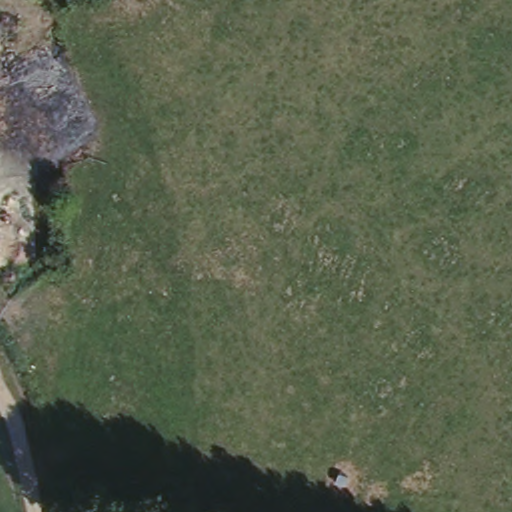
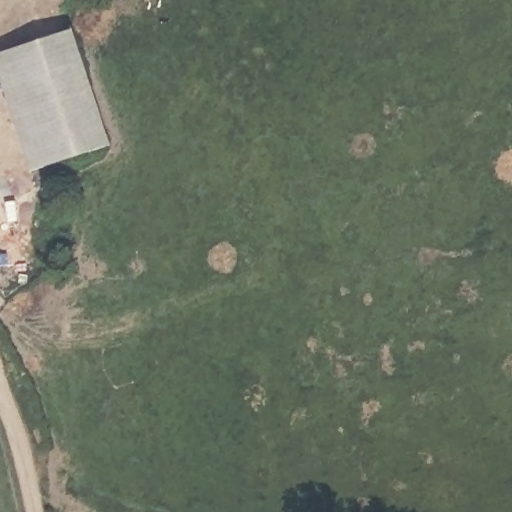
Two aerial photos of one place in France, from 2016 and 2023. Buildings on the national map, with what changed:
new [(71,21),(107,138),(29,162),(0,76),(0,47),(71,21)]
demolished [(55,59),(94,138),(31,164),(0,100),(0,80),(55,59)]

